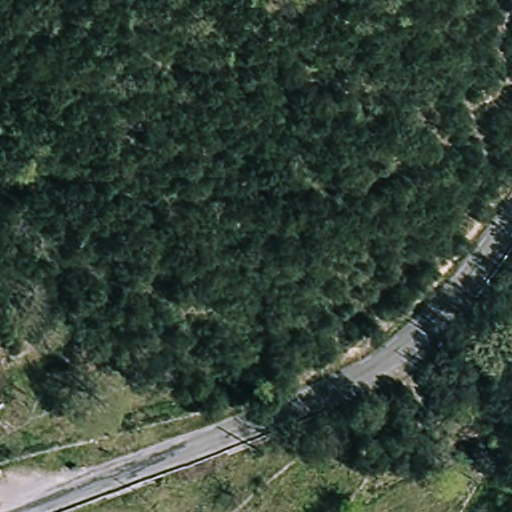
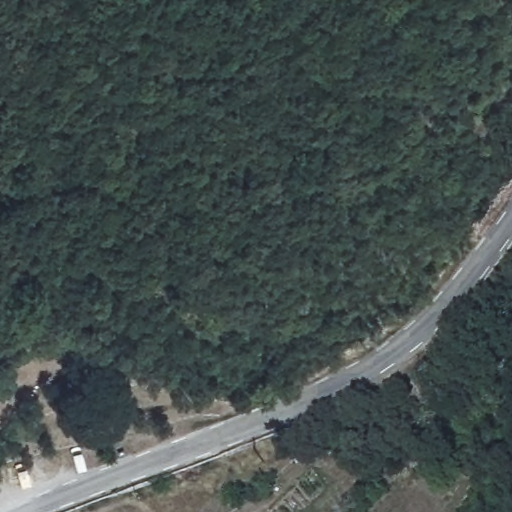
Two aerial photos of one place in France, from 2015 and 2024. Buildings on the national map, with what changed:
unchanged [(14,382),(0,384),(0,366),(9,365),(14,382)]

